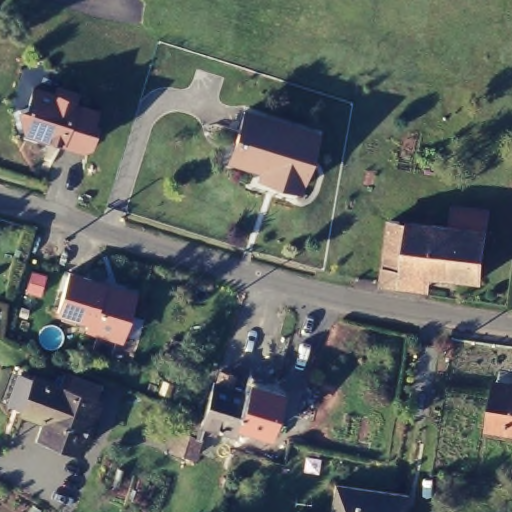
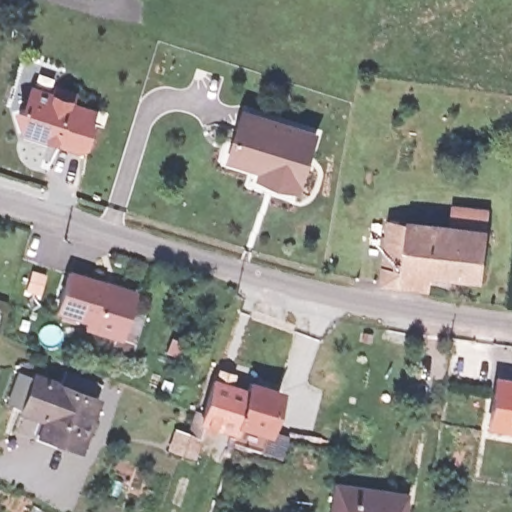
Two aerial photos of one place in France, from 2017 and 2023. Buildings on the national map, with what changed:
unchanged [(92,119),(96,120),(88,146),(60,137),(62,132),(52,129),(50,135),(26,127),(20,105),(28,102),(35,82),(55,89),(57,81),(77,87),(74,98),(97,105),(92,119)]
unchanged [(259,161),(233,154),(228,144),(230,135),(240,106),(312,129),(295,185),(274,178),(255,172),(259,161)]
unchanged [(383,272),(385,257),(390,210),(450,217),(452,197),(488,201),(480,269),(430,263),(428,278),(383,272)]
unchanged [(86,323),(89,316),(57,306),(70,267),(104,279),(135,289),(134,294),(121,335),(86,323)]
unchanged [(177,425),(189,430),(197,407),(204,410),(214,376),(216,377),(220,366),(233,370),(230,381),(247,387),(267,393),(253,439),(227,431),(229,426),(205,418),(195,452),(182,448),(172,445),(177,425)]
unchanged [(90,418),(87,426),(82,424),(74,445),(37,431),(44,415),(17,405),(30,370),(55,380),(55,381),(57,383),(62,369),(95,381),(90,395),(92,396),(85,416),(90,418)]
unchanged [(489,422),(497,375),(512,377),(512,426),(489,422)]
unchanged [(399,512),(325,512),(330,479),(402,490),(399,512)]

